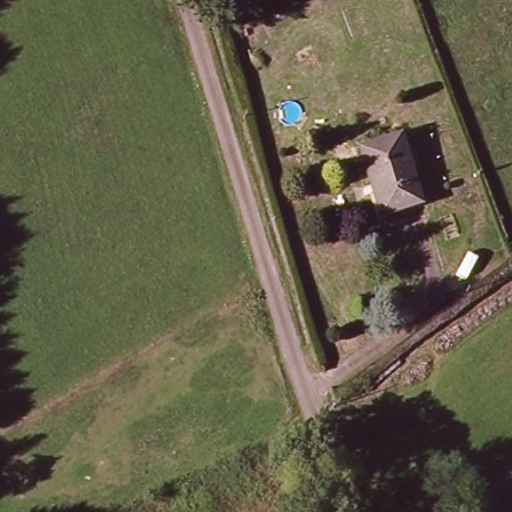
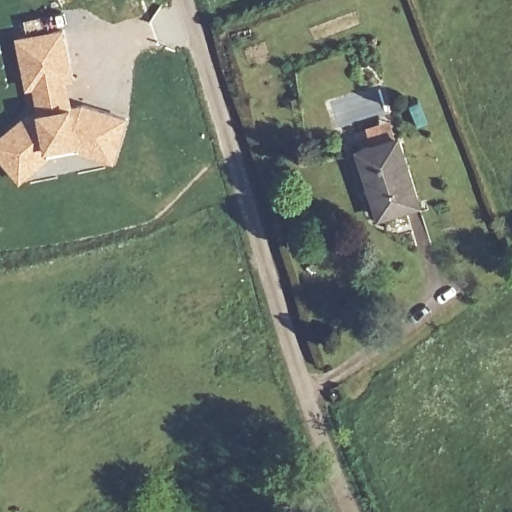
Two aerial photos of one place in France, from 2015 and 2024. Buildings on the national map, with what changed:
new [(27,115),(39,113),(37,88),(27,91),(19,36),(67,29),(74,81),(70,84),(73,106),(84,104),(127,117),(113,161),(79,150),(77,142),(48,148),(50,156),(32,171),(20,181),(0,157),(0,138),(2,136),(27,115)]
unchanged [(418,198),(382,210),(362,147),(400,134),(418,198)]

